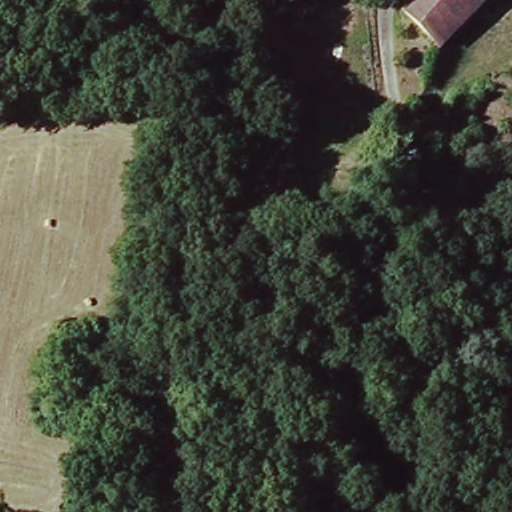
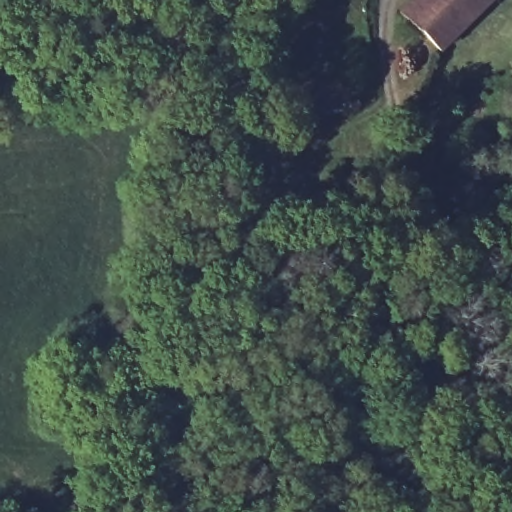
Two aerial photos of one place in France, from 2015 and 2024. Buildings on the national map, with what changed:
unchanged [(405,20),(421,0),(495,0),(449,54),(405,20)]
unchanged [(188,444),(138,430),(135,443),(105,436),(117,390),(197,412),(188,444)]
unchanged [(335,437),(405,456),(397,490),(325,470),(335,437)]
unchanged [(310,510),(315,512),(310,512),(310,510)]

